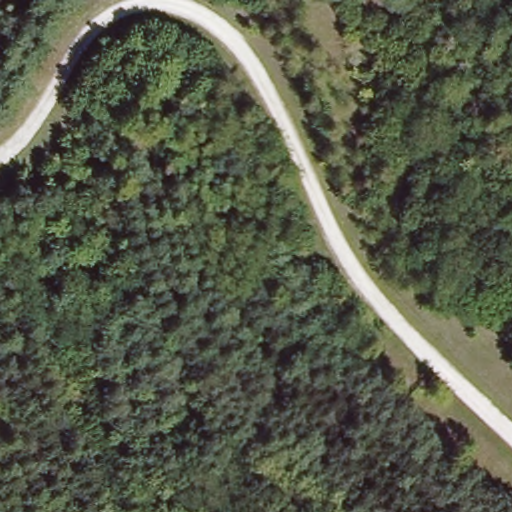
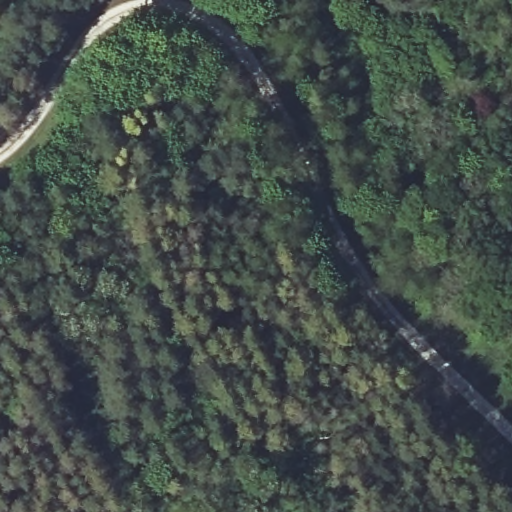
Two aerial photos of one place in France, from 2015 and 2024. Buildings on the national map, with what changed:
[]

